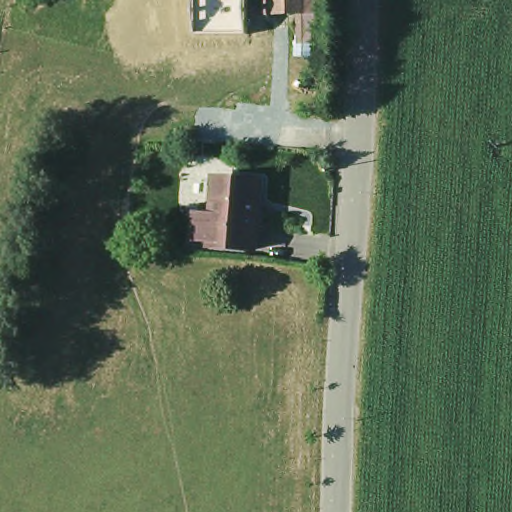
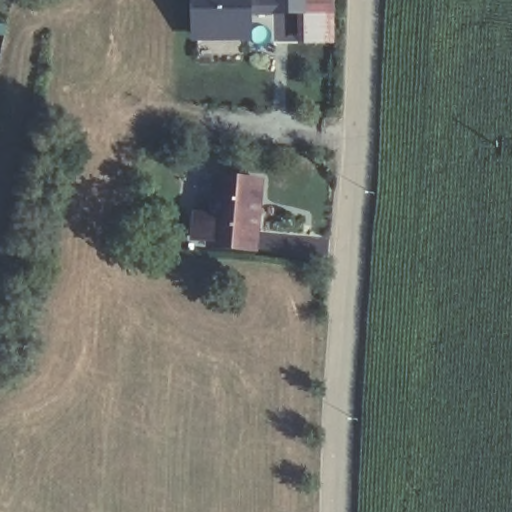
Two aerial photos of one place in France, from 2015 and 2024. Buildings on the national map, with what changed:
new [(248,34),(196,34),(195,0),(248,0),(248,34)]
unchanged [(267,18),(265,0),(332,0),(333,17),(267,18)]
unchanged [(257,247),(212,245),(212,240),(199,240),(201,218),(214,218),(217,179),(262,181),(257,247)]

